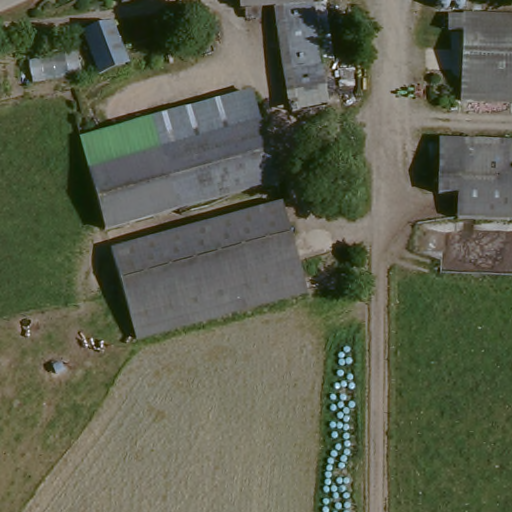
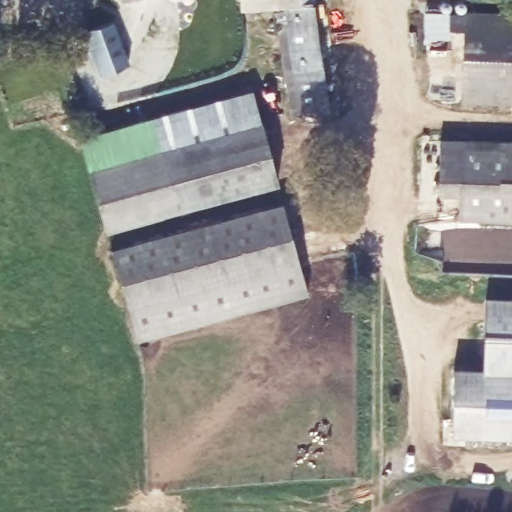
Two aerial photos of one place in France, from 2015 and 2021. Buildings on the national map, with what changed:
unchanged [(123,0),(127,0),(123,1),(123,0)]
unchanged [(282,77),(277,6),(241,8),(240,0),(314,0),(315,4),(310,4),(315,75),(317,95),(283,97),(282,77)]
unchanged [(462,37),(445,36),(445,25),(462,25),(463,19),(512,20),(512,108),(460,106),(462,37)]
unchanged [(115,25),(126,68),(97,75),(85,31),(115,25)]
unchanged [(275,185),(102,228),(80,139),(253,96),(275,185)]
unchanged [(453,194),(434,193),(435,171),(435,140),(512,142),(512,220),(453,219),(453,194)]
unchanged [(285,206),(307,296),(134,339),(112,249),(285,206)]
new [(453,369),(484,371),(486,300),(512,300),(512,438),(452,437),(453,369)]

